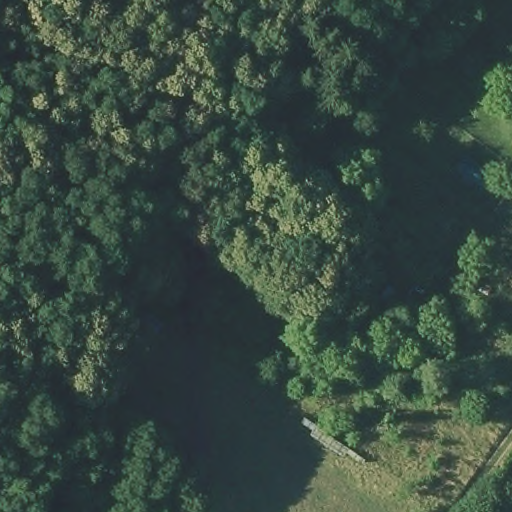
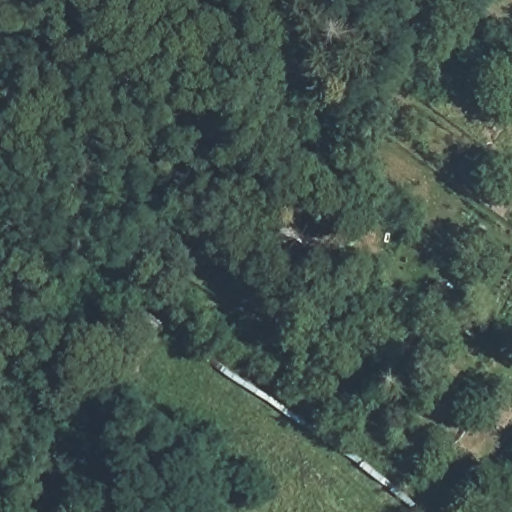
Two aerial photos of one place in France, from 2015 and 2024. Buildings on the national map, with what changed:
[]

